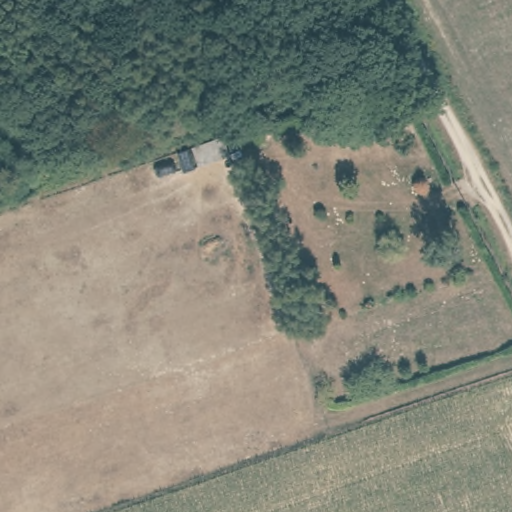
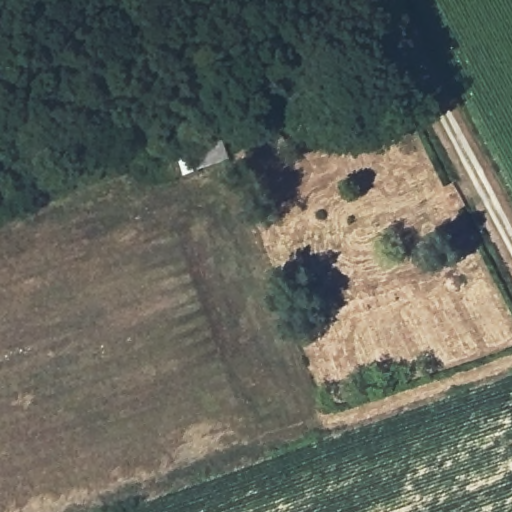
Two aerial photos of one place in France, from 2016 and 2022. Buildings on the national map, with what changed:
unchanged [(175,148),(223,134),(231,154),(183,169),(175,148)]

